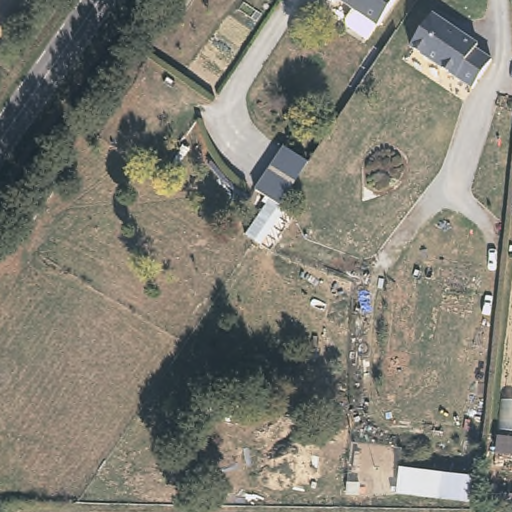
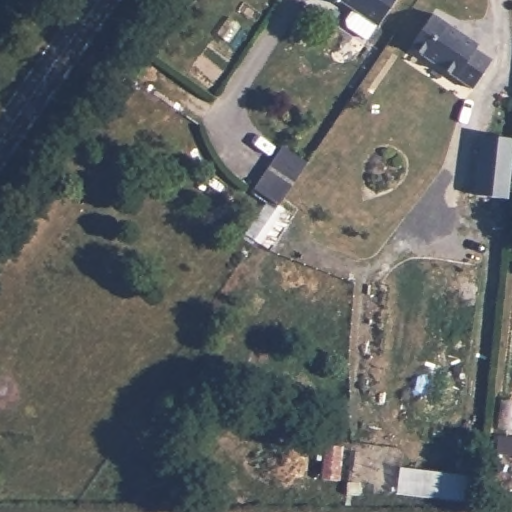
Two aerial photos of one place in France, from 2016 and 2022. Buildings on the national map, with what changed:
unchanged [(378,20),(347,0),(391,0),(378,20)]
unchanged [(480,42),(477,46),(493,58),(474,87),(412,44),(435,11),(480,42)]
new [(512,137),(512,151),(507,198),(473,193),(479,135),(512,137)]
unchanged [(304,153),(283,183),(274,196),(251,180),(281,138),(304,153)]
unchanged [(512,455),(492,452),(494,435),(512,438),(512,455)]
unchanged [(440,475),(438,500),(398,495),(401,470),(440,475)]

